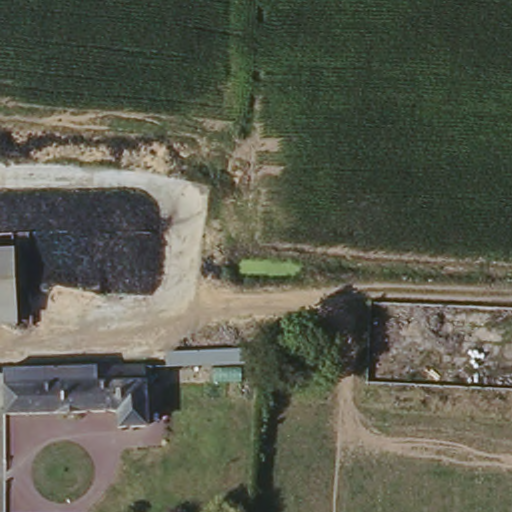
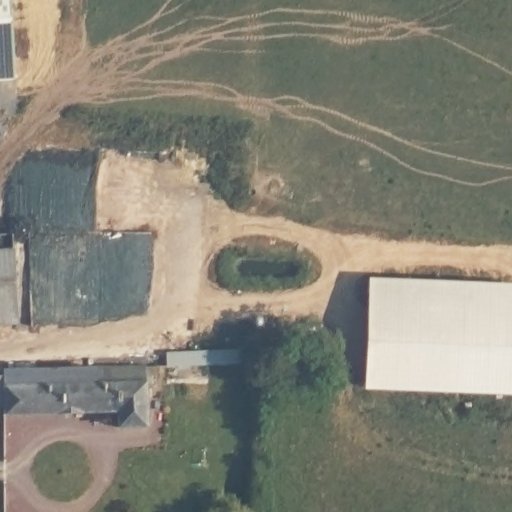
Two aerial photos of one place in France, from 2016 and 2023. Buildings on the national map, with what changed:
new [(9,96),(0,97),(0,0),(6,0),(9,96)]
unchanged [(19,328),(0,329),(0,250),(12,249),(19,328)]
new [(512,297),(512,410),(367,413),(367,292),(512,297)]
unchanged [(121,422),(1,419),(0,410),(0,365),(12,365),(11,372),(151,377),(150,436),(121,435),(121,422)]
unchanged [(232,512),(219,512),(219,506),(232,506),(232,512)]

